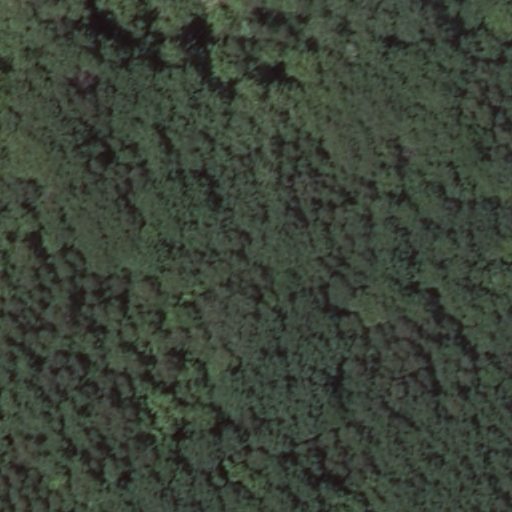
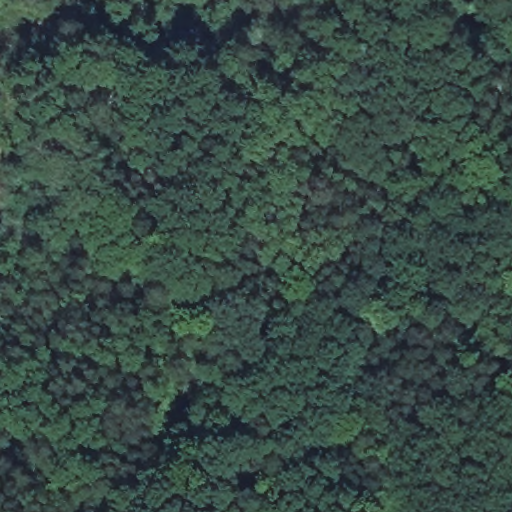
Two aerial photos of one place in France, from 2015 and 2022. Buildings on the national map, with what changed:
[]

